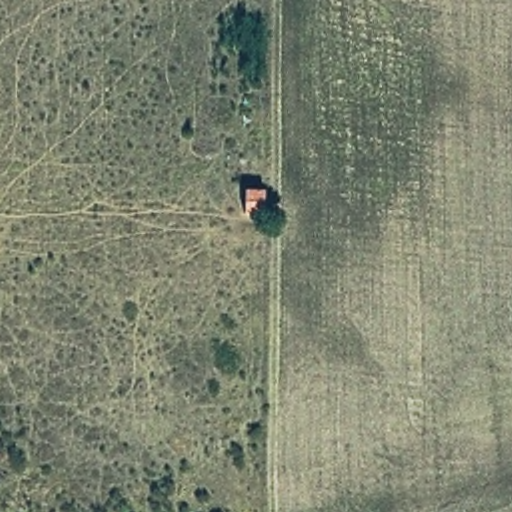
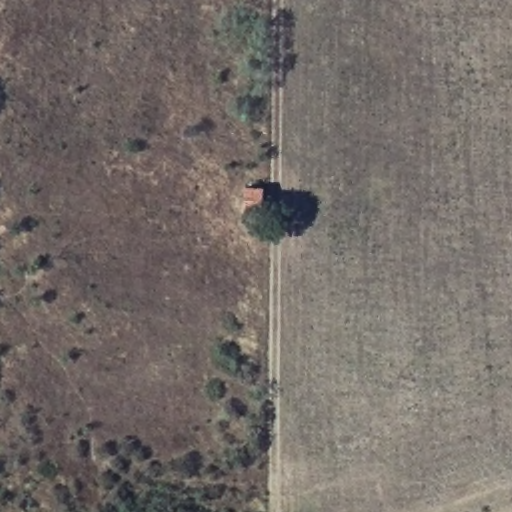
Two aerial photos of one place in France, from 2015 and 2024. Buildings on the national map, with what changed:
unchanged [(243,189),(265,189),(266,214),(244,212),(243,189)]

